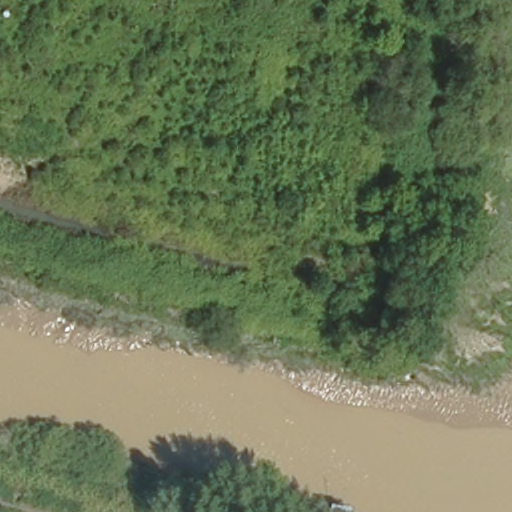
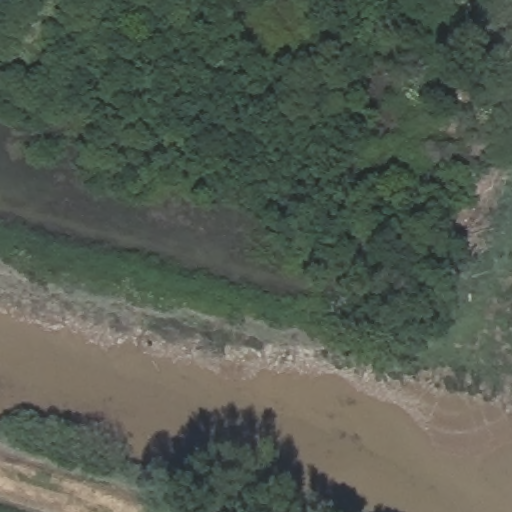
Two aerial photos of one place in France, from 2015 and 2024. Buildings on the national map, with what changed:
[]

